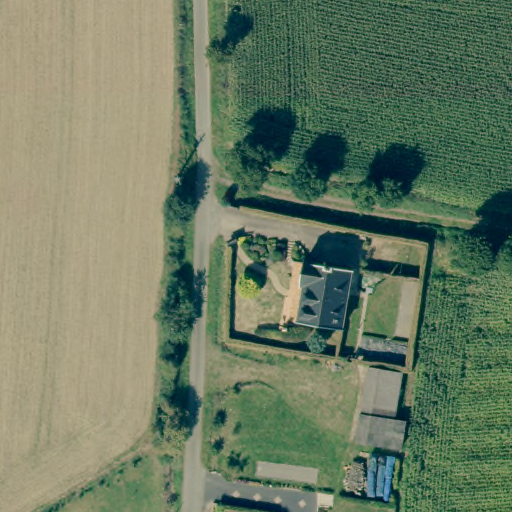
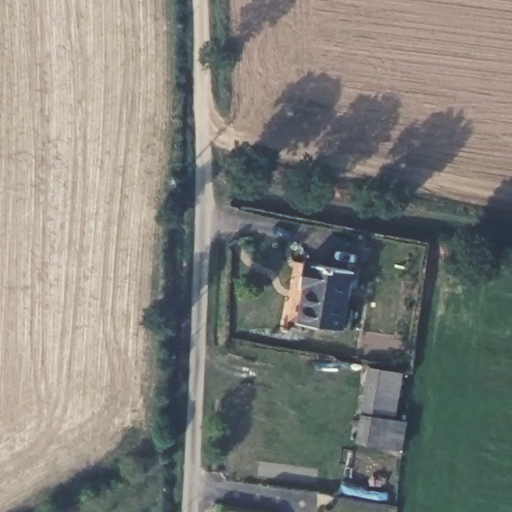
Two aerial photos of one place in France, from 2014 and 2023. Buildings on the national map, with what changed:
unchanged [(299,285),(292,283),(295,261),(343,268),(332,330),(292,325),(299,285)]
unchanged [(367,369),(398,375),(390,423),(359,417),(367,369)]
unchanged [(404,426),(400,452),(397,451),(355,444),(359,417),(390,423),(401,425),(404,426)]

